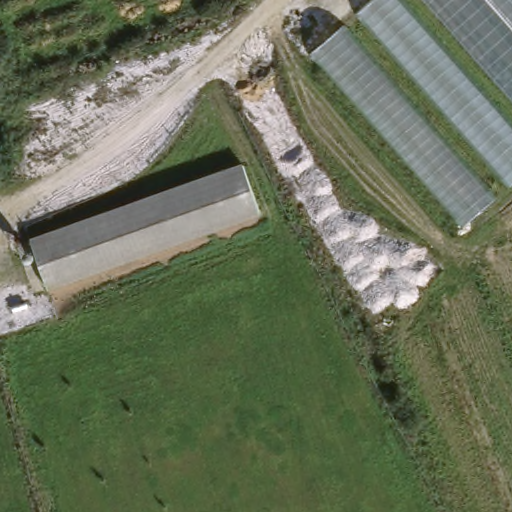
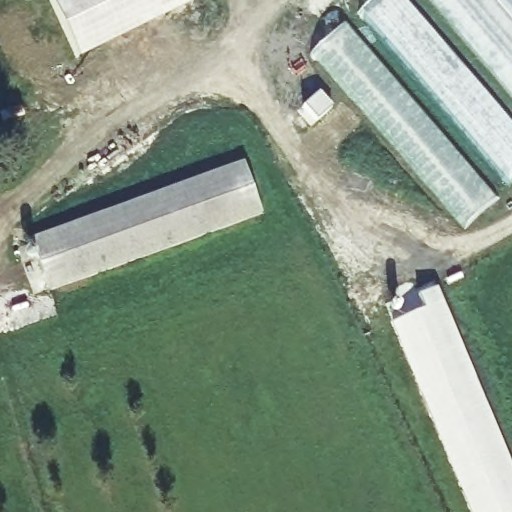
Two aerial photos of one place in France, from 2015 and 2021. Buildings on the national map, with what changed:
new [(189,6),(75,60),(47,0),(186,0),(189,6)]
unchanged [(358,12),(371,0),(404,0),(512,122),(512,185),(512,186),(358,12)]
unchanged [(436,0),(512,0),(512,87),(436,0)]
unchanged [(345,24),(497,199),(464,228),(312,53),(345,24)]
unchanged [(266,211),(53,287),(36,243),(251,165),(266,211)]
new [(414,296),(429,291),(509,512),(457,512),(388,321),(419,310),(414,296)]

